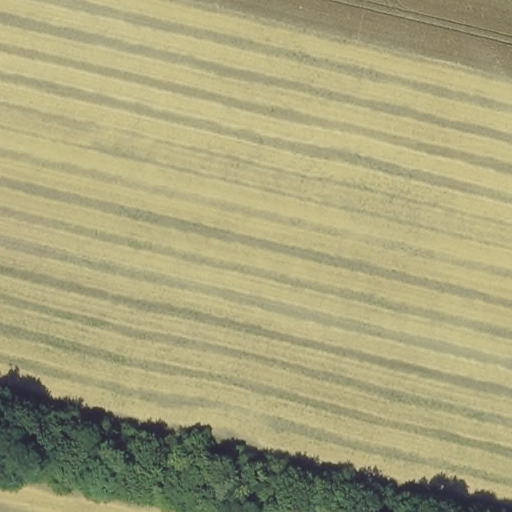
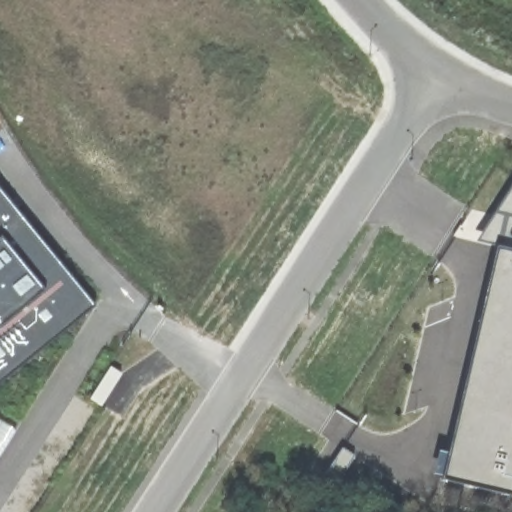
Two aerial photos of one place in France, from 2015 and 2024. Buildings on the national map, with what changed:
new [(495,246),(475,241),(512,184),(512,497),(440,480),(495,246)]
new [(0,384),(0,189),(95,306),(0,384)]
new [(111,367),(121,374),(101,406),(90,399),(111,367)]
new [(0,457),(0,420),(17,431),(0,457)]
new [(342,448),(354,456),(338,482),(324,475),(342,448)]

